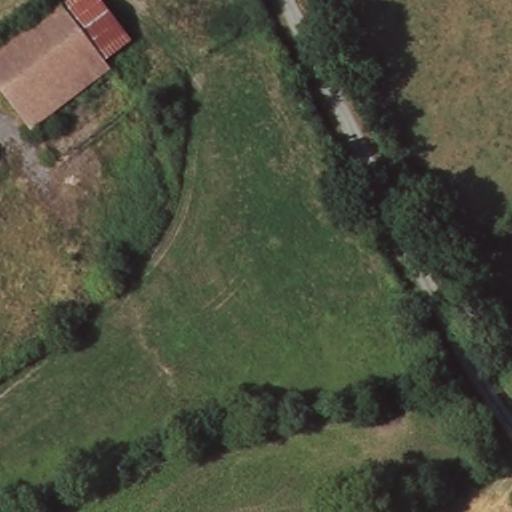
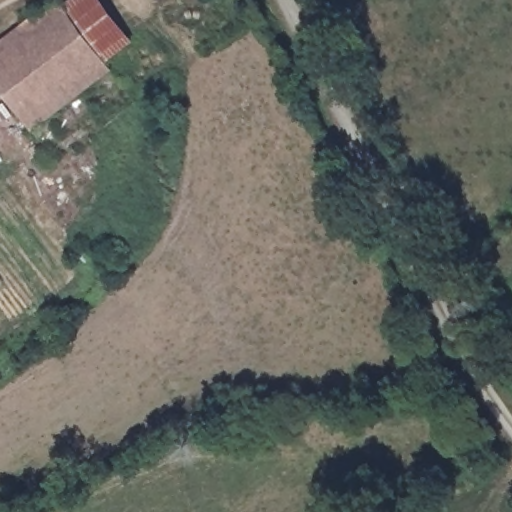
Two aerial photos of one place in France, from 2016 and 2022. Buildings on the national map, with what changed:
unchanged [(0,89),(0,40),(52,0),(58,0),(62,5),(102,58),(104,61),(111,69),(31,130),(0,89)]
unchanged [(62,5),(69,0),(99,0),(130,42),(104,61),(102,58),(62,5)]

